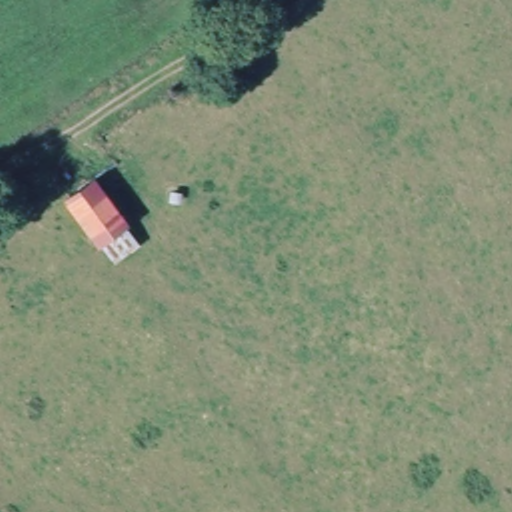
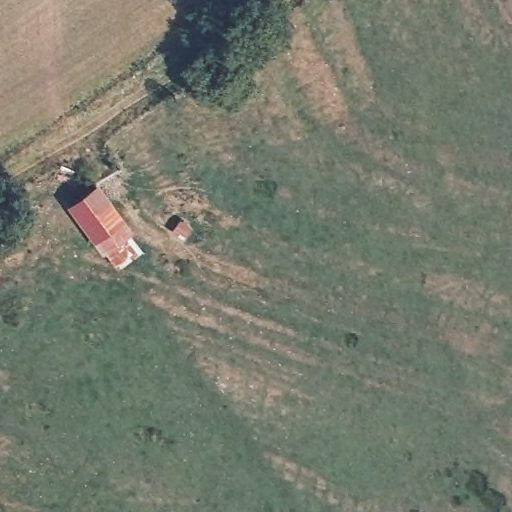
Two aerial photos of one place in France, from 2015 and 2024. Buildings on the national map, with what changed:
unchanged [(112,265),(99,247),(69,204),(94,189),(123,229),(136,247),(112,265)]

